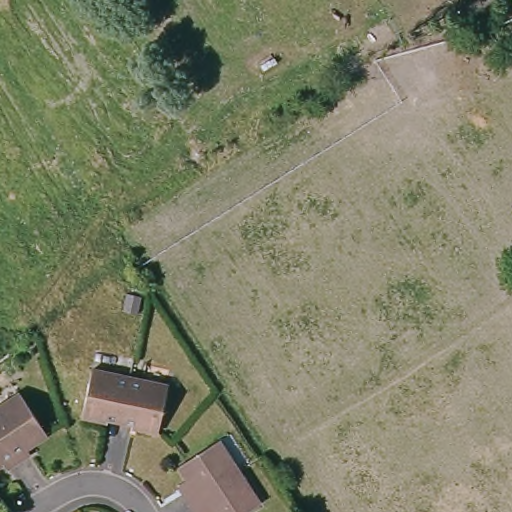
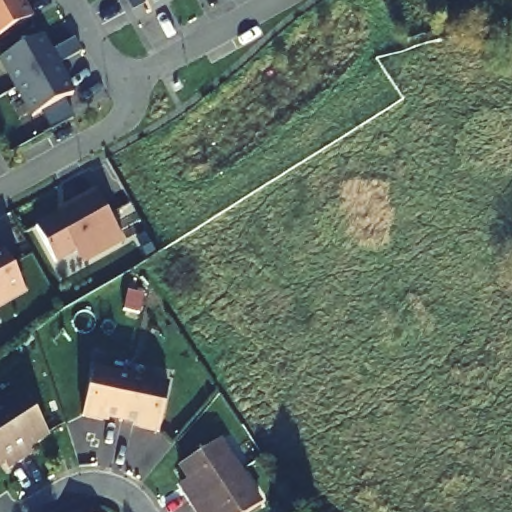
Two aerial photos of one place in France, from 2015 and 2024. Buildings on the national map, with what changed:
new [(0,37),(0,0),(23,0),(32,19),(0,37)]
new [(152,16),(143,0),(180,0),(152,16)]
new [(30,121),(0,68),(0,60),(45,36),(75,95),(30,121)]
new [(95,191),(122,239),(80,262),(73,249),(53,260),(34,225),(95,191)]
new [(22,289),(0,301),(0,248),(1,248),(22,289)]
unchanged [(117,423),(83,411),(97,368),(130,380),(117,423)]
unchanged [(166,391),(152,434),(117,423),(130,380),(166,391)]
unchanged [(0,412),(20,398),(47,437),(27,451),(30,456),(18,464),(0,437),(0,412)]
unchanged [(187,500),(177,486),(188,479),(177,462),(217,435),(237,465),(187,500)]
unchanged [(5,473),(0,467),(0,437),(18,464),(5,473)]
unchanged [(260,499),(241,512),(210,512),(205,504),(194,511),(187,500),(237,465),(260,499)]

